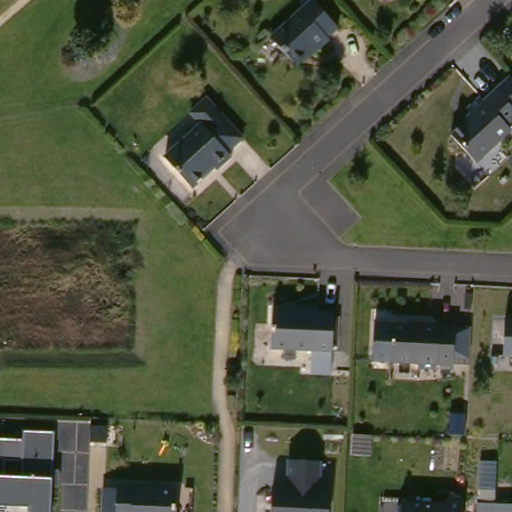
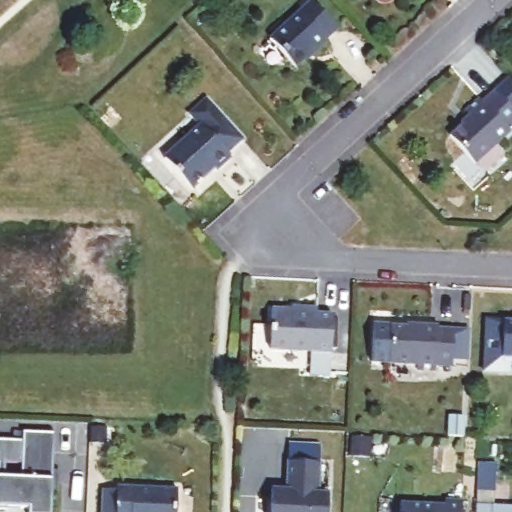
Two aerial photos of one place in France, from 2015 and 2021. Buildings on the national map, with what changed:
unchanged [(334,38),(321,49),(320,48),(301,64),(276,36),(315,0),(319,0),(343,26),(332,35),(334,38)]
unchanged [(512,85),(512,114),(511,114),(512,115),(512,123),(504,130),(506,133),(471,164),(446,136),(458,125),(457,123),(465,115),(461,111),(475,99),(478,102),(505,78),(512,85)]
unchanged [(227,150),(231,154),(216,168),(215,165),(192,186),(165,156),(201,124),(189,109),(205,95),(220,110),(243,136),(227,150)]
unchanged [(323,306),(340,307),(337,344),(336,367),(316,366),(317,344),(276,342),(278,302),(304,302),(305,299),(323,300),(323,306)]
unchanged [(505,317),(512,317),(512,353),(504,353),(505,317)]
unchanged [(433,362),(432,367),(414,366),(414,361),(385,359),(387,322),(403,323),(403,320),(435,322),(435,324),(450,325),(465,325),(464,357),(449,356),(449,362),(433,362)]
unchanged [(33,511),(11,510),(11,512),(0,512),(0,478),(1,479),(2,466),(0,466),(0,441),(27,442),(27,433),(60,434),(58,473),(57,487),(56,512),(33,512),(33,511)]
unchanged [(267,490),(286,491),(286,484),(282,484),(283,463),(315,464),(315,494),(324,494),(323,512),(266,512),(267,490)]
unchanged [(97,491),(112,492),(112,488),(172,491),(172,512),(96,512),(97,491)]
unchanged [(392,510),(396,507),(397,504),(442,506),(442,500),(459,501),(458,512),(392,512),(392,510)]
unchanged [(473,504),(488,505),(512,506),(512,512),(473,512),(473,504)]

